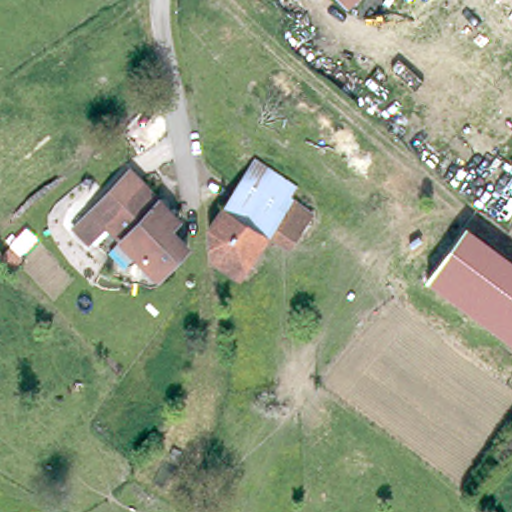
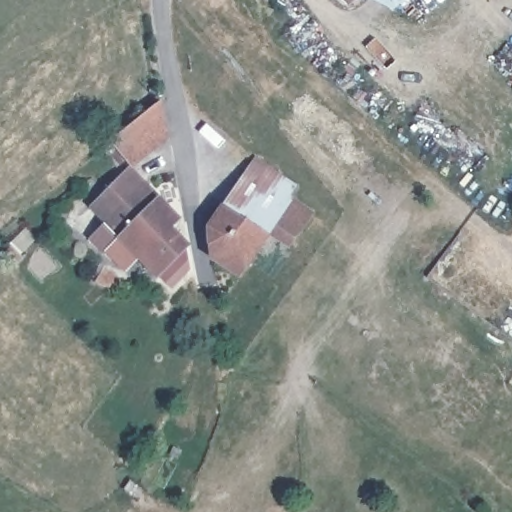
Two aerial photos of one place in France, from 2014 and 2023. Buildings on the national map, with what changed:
unchanged [(340,10),(331,0),(355,0),(342,12),(340,10)]
new [(374,0),(403,0),(392,9),(374,0)]
new [(111,142),(162,101),(169,138),(132,168),(111,142)]
unchanged [(269,226),(237,274),(208,260),(203,230),(245,160),(248,156),(252,158),(288,184),(287,199),(306,215),(295,228),(285,241),(269,226)]
unchanged [(70,229),(89,211),(128,173),(177,224),(169,232),(139,261),(138,261),(129,252),(122,245),(104,227),(85,245),(70,229)]
demolished [(467,224),(512,259),(512,345),(425,278),(467,224)]
unchanged [(185,249),(157,279),(139,261),(169,232),(185,249)]

